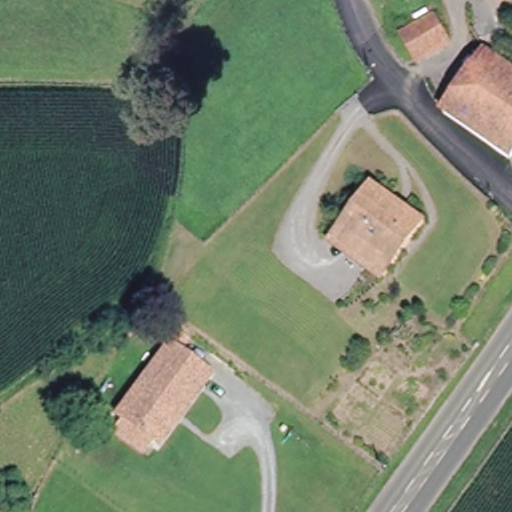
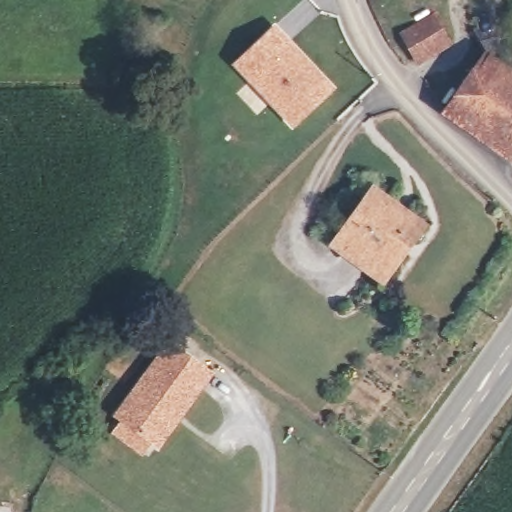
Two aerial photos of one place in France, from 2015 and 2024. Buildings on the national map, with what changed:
unchanged [(452,45),(421,59),(411,37),(442,22),(452,45)]
new [(335,89),(292,130),(230,66),(273,23),(335,89)]
unchanged [(512,69),(512,153),(449,113),(488,54),(512,69)]
unchanged [(338,241),(346,227),(375,184),(424,219),(395,262),(387,275),(338,241)]
demolished [(434,326),(438,329),(410,348),(395,338),(428,316),(432,310),(441,316),(434,326)]
unchanged [(118,433),(126,421),(118,416),(168,344),(209,372),(159,444),(152,440),(144,450),(118,433)]

